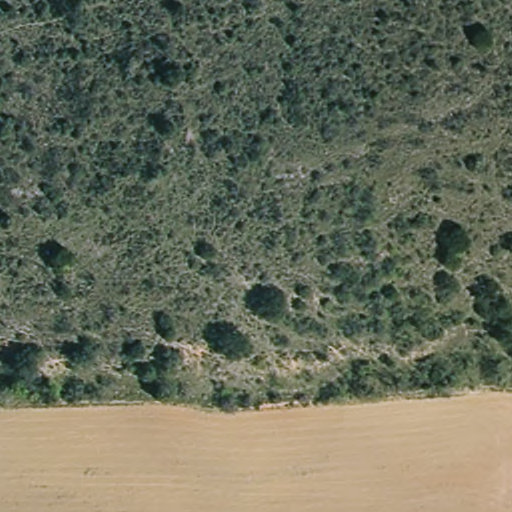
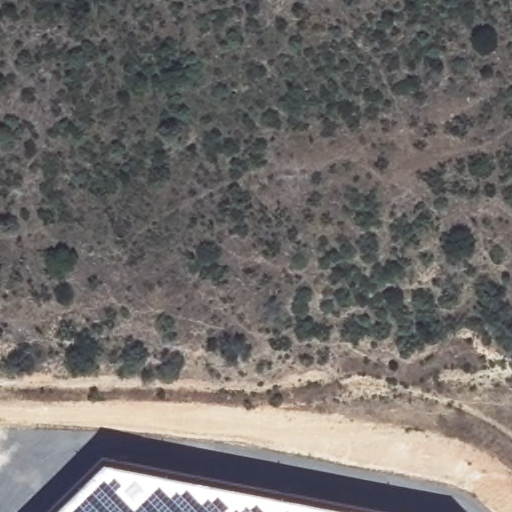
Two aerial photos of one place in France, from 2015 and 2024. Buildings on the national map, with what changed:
new [(104,460),(374,512),(50,512),(104,460)]

